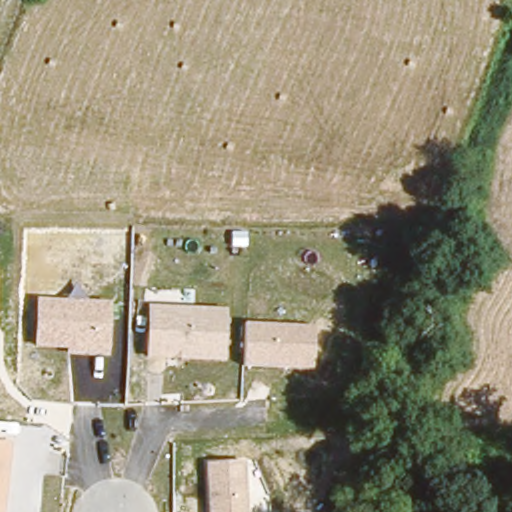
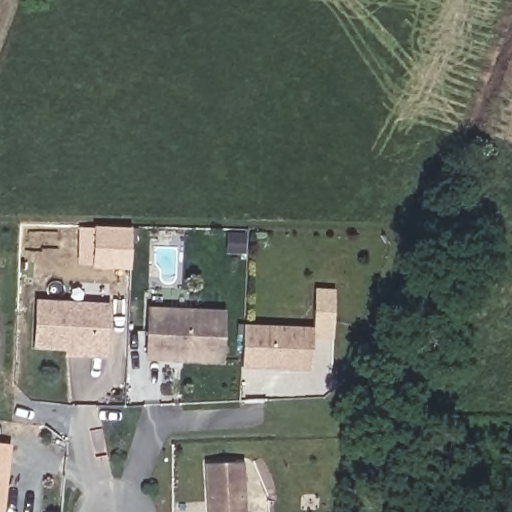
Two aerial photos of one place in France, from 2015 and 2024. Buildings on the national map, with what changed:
new [(132,226),(130,268),(92,267),(92,265),(78,264),(79,227),(94,228),(95,225),(132,226)]
unchanged [(66,348),(33,348),(36,298),(111,302),(107,357),(65,356),(66,348)]
unchanged [(146,360),(147,305),(226,308),(224,361),(146,360)]
unchanged [(313,326),(312,369),(242,367),(244,323),(313,326)]
unchanged [(0,512),(0,442),(12,443),(4,512),(0,512)]
unchanged [(245,461),(247,512),(207,512),(205,463),(245,461)]

